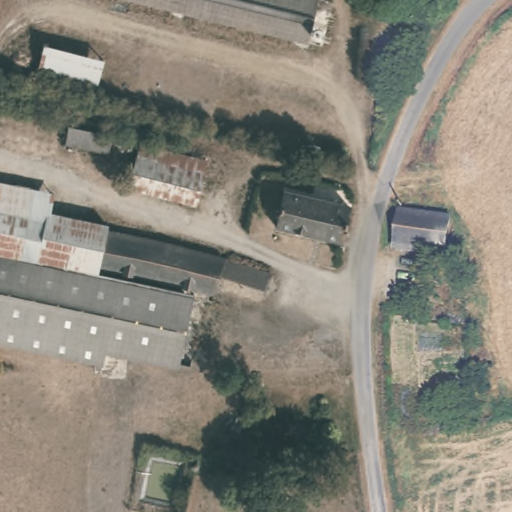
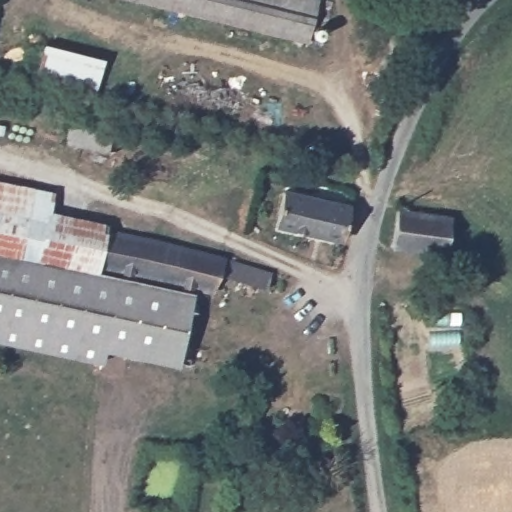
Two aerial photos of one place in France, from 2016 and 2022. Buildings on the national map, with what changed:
unchanged [(308,49),(108,0),(300,0),(319,4),(308,49)]
unchanged [(95,96),(34,83),(41,46),(105,61),(95,96)]
unchanged [(46,211),(104,224),(103,230),(95,269),(193,292),(176,357),(174,364),(100,346),(96,356),(0,335),(0,190),(48,200),(46,211)]
unchanged [(339,244),(273,229),(282,195),(347,209),(339,244)]
unchanged [(392,253),(400,214),(448,219),(444,258),(392,253)]
unchanged [(95,269),(103,230),(175,245),(211,256),(289,282),(285,296),(219,277),(212,296),(193,292),(95,269)]

